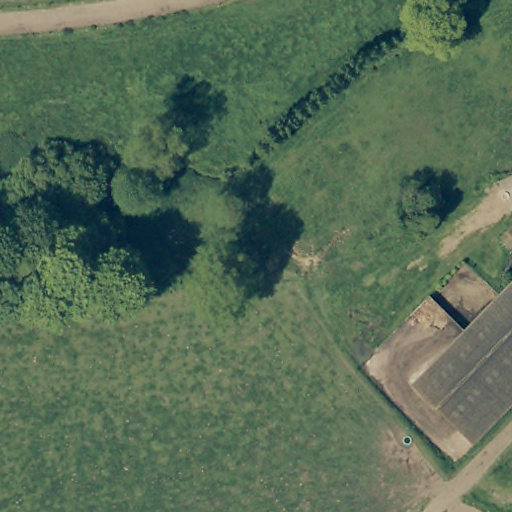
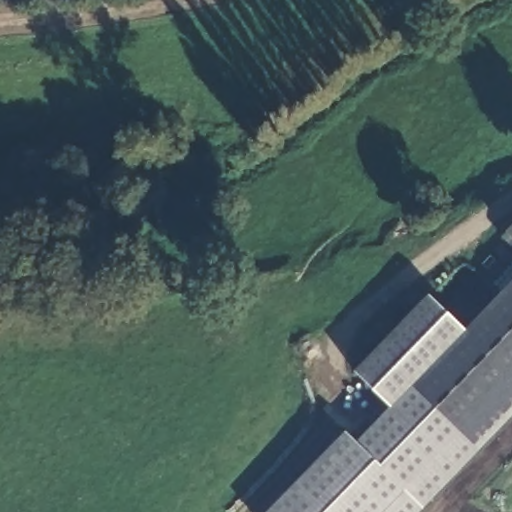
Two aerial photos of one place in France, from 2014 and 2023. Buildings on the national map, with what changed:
unchanged [(503,227),(512,218),(512,236),(503,227)]
unchanged [(475,435),(415,377),(512,277),(512,397),(475,435)]
new [(475,435),(512,397),(512,418),(421,512),(266,512),(345,430),(357,441),(390,406),(353,373),(430,295),(461,329),(415,377),(475,435)]

